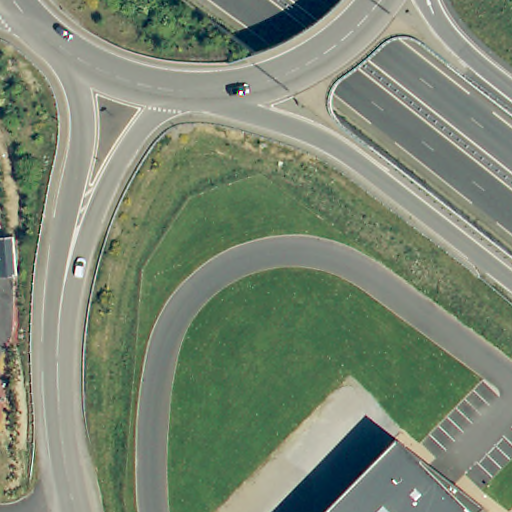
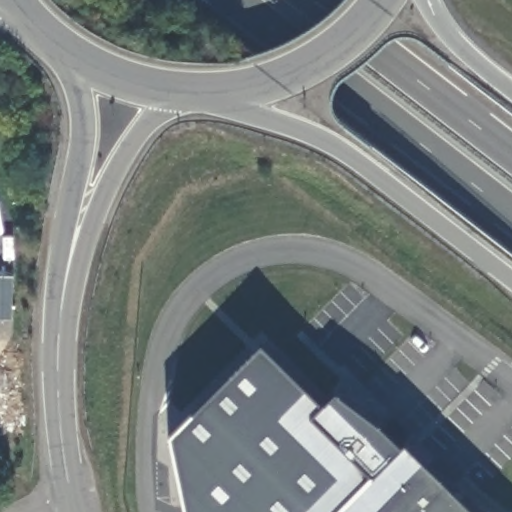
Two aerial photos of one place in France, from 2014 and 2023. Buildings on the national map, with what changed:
new [(260,345),(322,407),(334,393),(402,450),(340,512),(184,512),(169,437),(260,345)]
new [(405,447),(470,512),(340,512),(402,450),(405,447)]

